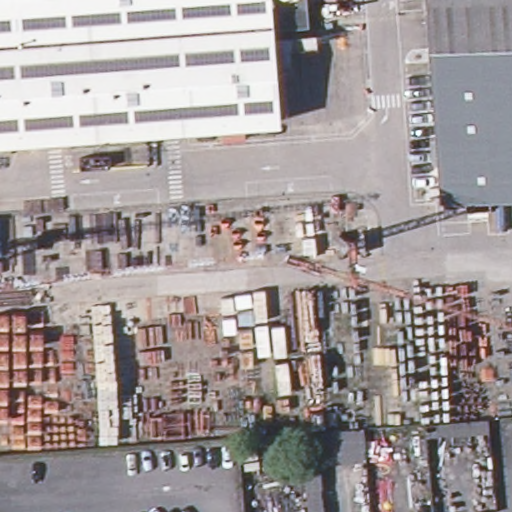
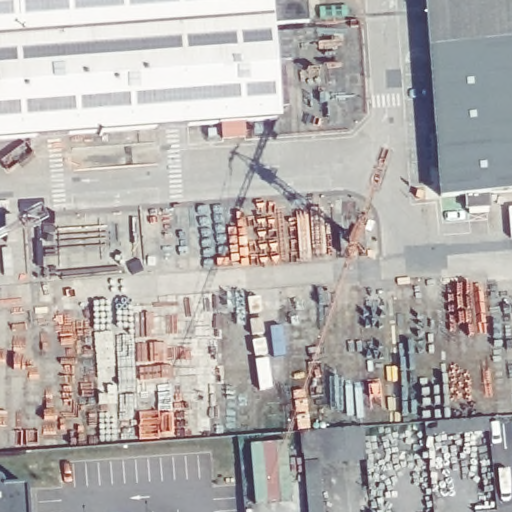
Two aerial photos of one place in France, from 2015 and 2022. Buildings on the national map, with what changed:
unchanged [(221,140),(219,125),(0,141),(0,0),(267,0),(276,121),(243,123),(243,138),(221,140)]
unchanged [(464,197),(439,199),(424,0),(512,0),(512,193),(487,195),(488,209),(466,210),(464,197)]
new [(3,475),(5,477),(5,483),(27,484),(30,512),(0,512),(0,475),(3,475)]

